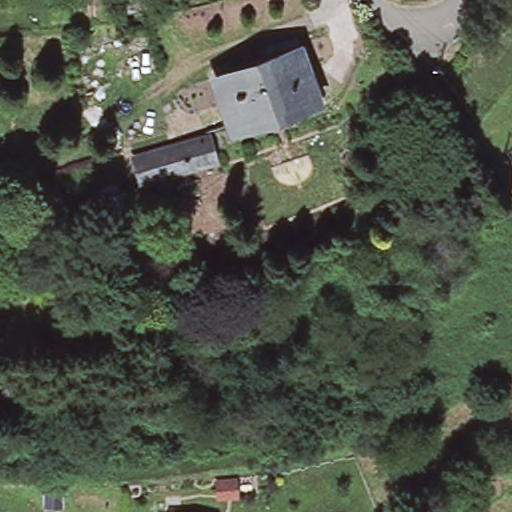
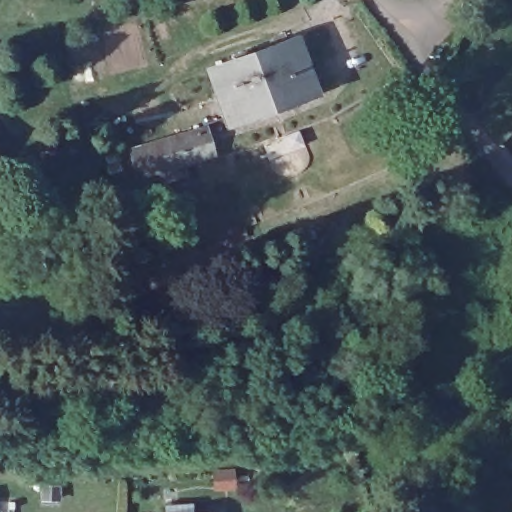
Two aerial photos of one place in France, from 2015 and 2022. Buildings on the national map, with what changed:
unchanged [(292,54),(301,50),(315,92),(305,95),(230,121),(213,72),(288,45),(292,54)]
unchanged [(158,183),(152,169),(137,174),(128,151),(187,131),(204,125),(212,149),(195,154),(185,158),(192,173),(158,183)]
unchanged [(122,206),(125,218),(108,221),(105,209),(122,206)]

